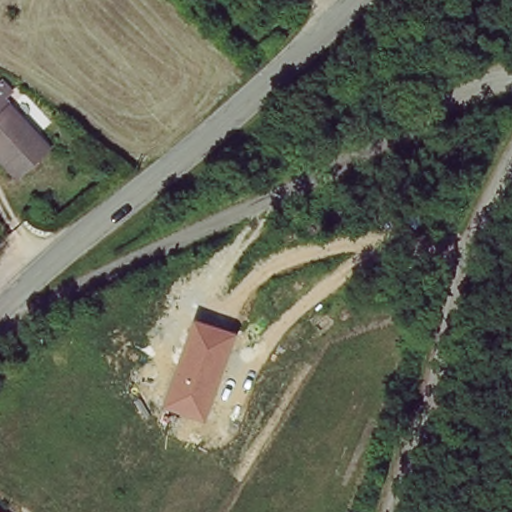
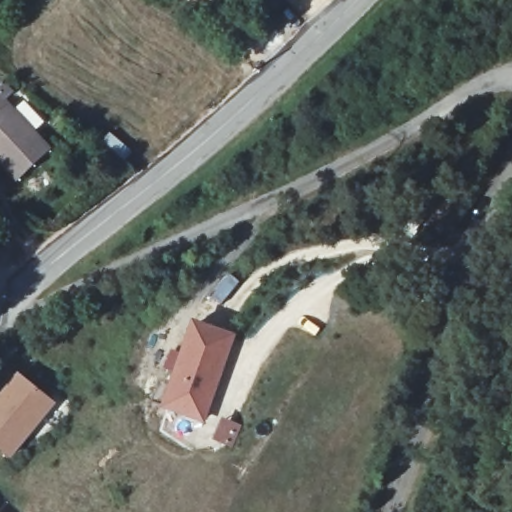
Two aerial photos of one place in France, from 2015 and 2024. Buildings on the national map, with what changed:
unchanged [(15,100),(7,107),(14,115),(55,158),(20,188),(0,165),(0,97),(7,91),(15,100)]
unchanged [(235,335),(207,425),(160,408),(194,321),(235,335)]
new [(57,402),(11,458),(0,449),(0,397),(20,373),(57,402)]

